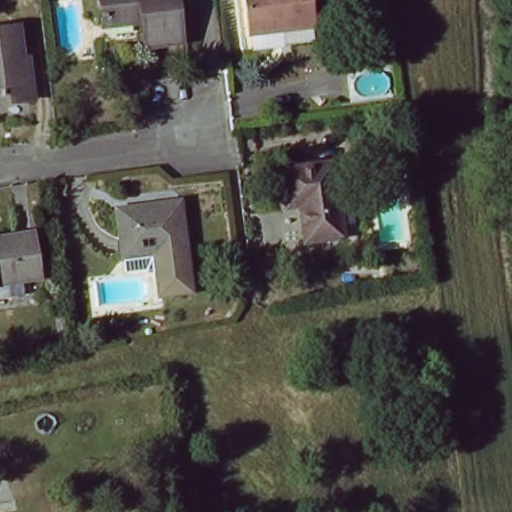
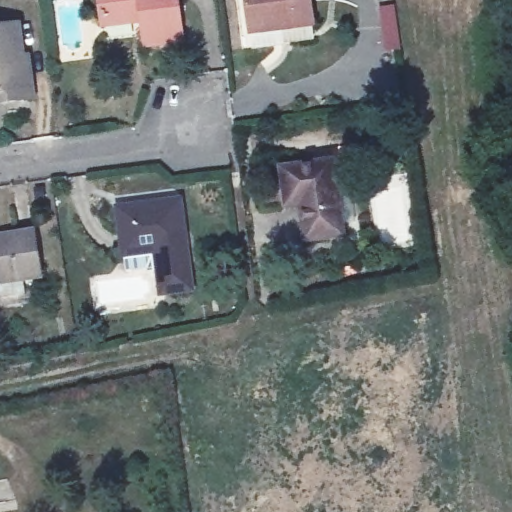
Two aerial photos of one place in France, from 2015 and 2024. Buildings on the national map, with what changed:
unchanged [(102,0),(179,0),(185,45),(148,49),(144,24),(105,28),(102,0)]
unchanged [(248,32),(247,0),(310,0),(311,30),(248,32)]
unchanged [(25,69),(31,69),(35,104),(0,107),(0,32),(20,30),(25,69)]
unchanged [(303,210),(287,212),(282,175),(331,167),(343,240),(309,246),(303,210)]
unchanged [(182,205),(193,292),(164,295),(159,255),(125,258),(120,212),(182,205)]
unchanged [(0,240),(35,235),(40,279),(21,281),(23,296),(0,299),(0,240)]

